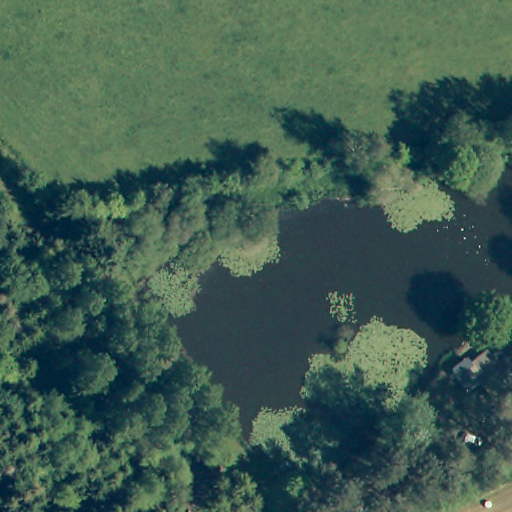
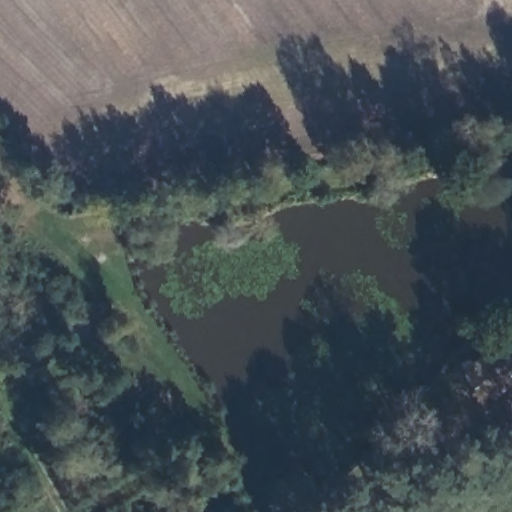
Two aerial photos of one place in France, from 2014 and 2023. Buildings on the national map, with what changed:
unchanged [(485,382),(473,363),(499,346),(510,366),(485,382)]

